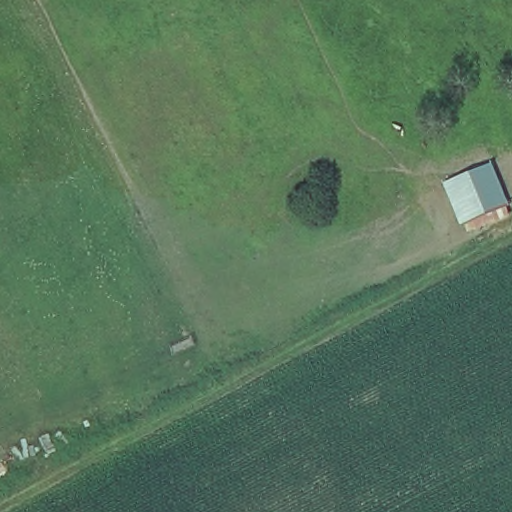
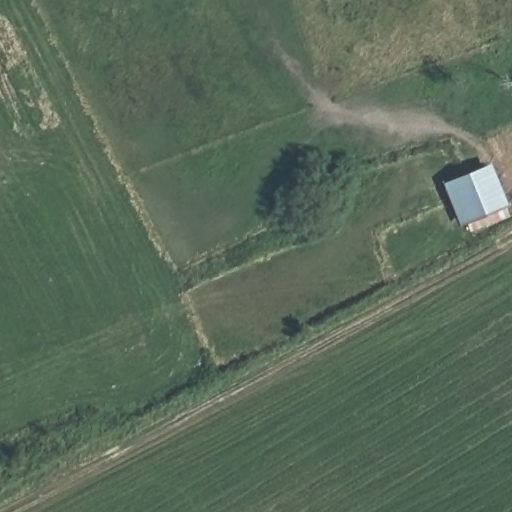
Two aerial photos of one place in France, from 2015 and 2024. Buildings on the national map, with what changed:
unchanged [(460,225),(444,186),(499,165),(512,204),(512,207),(460,225)]

